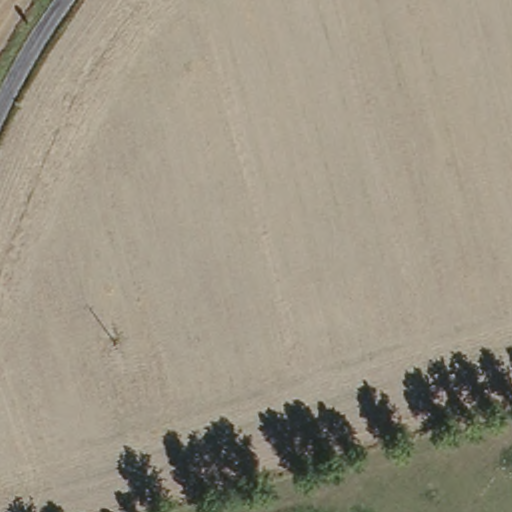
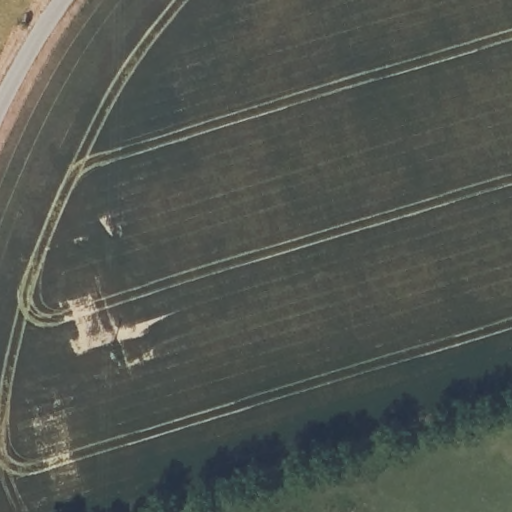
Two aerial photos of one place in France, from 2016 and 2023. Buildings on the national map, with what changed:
[]

